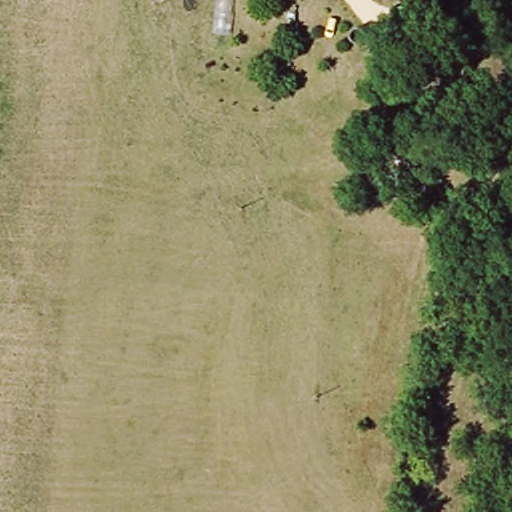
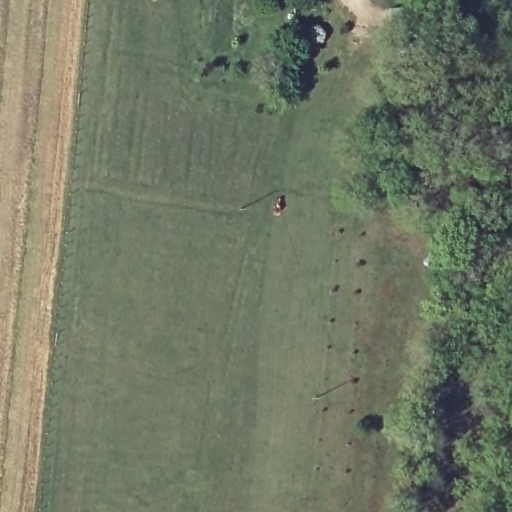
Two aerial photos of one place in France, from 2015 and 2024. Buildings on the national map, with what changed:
unchanged [(314,35),(320,34),(326,36),(330,41),(331,47),(329,52),(325,57),(318,57),(312,56),(308,51),(307,45),(309,39),(314,35)]

